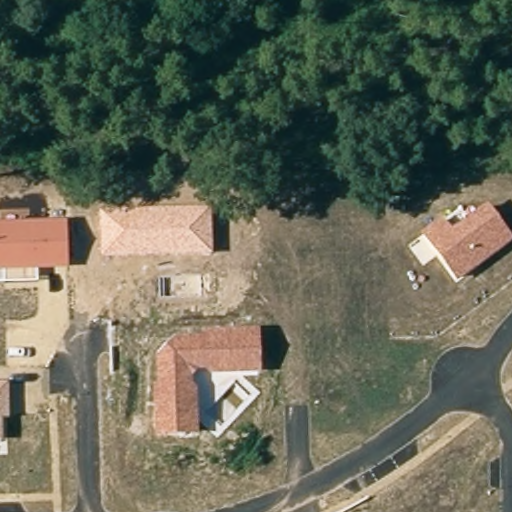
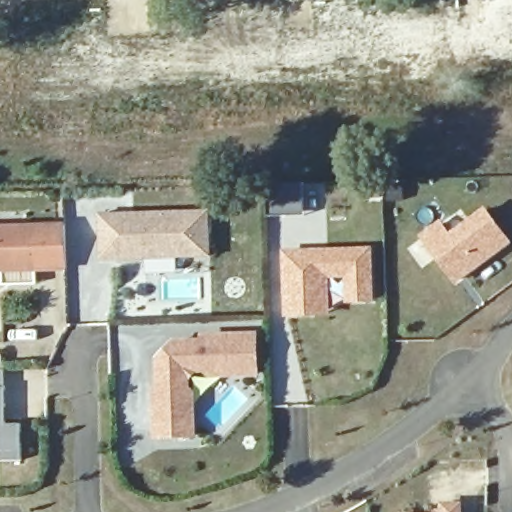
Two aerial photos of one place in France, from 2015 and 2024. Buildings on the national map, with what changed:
unchanged [(457,284),(420,236),(442,220),(451,232),(487,207),(512,242),(457,284)]
unchanged [(101,260),(100,215),(211,211),(213,256),(101,260)]
unchanged [(38,284),(0,285),(0,225),(65,224),(67,271),(37,272),(38,284)]
new [(375,304),(346,303),(345,280),(330,281),(331,316),(285,318),(283,251),(373,247),(375,304)]
unchanged [(260,376),(210,378),(205,374),(197,375),(191,381),(192,387),(197,390),(198,436),(155,437),(152,386),(157,385),(155,357),(174,338),(200,337),(200,332),(259,331),(260,376)]
unchanged [(0,444),(0,385),(8,385),(9,423),(2,422),(2,443),(0,444)]
new [(432,511),(440,510),(440,502),(462,502),(463,512),(432,512),(432,511)]

